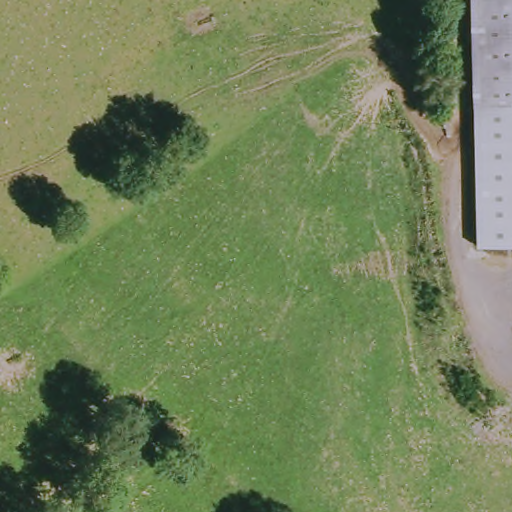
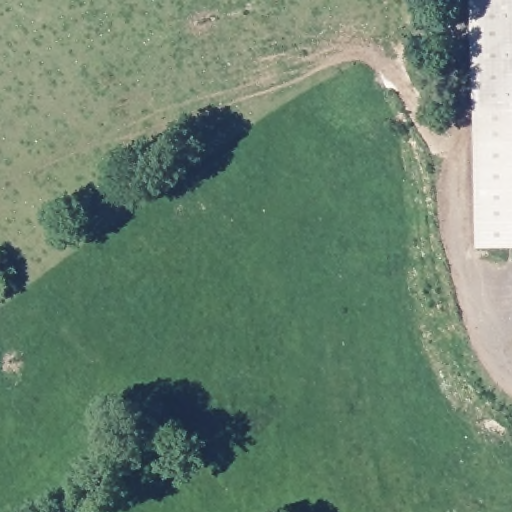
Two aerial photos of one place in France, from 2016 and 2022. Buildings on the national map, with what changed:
unchanged [(473,108),(468,0),(512,0),(512,247),(473,248),(473,108)]

